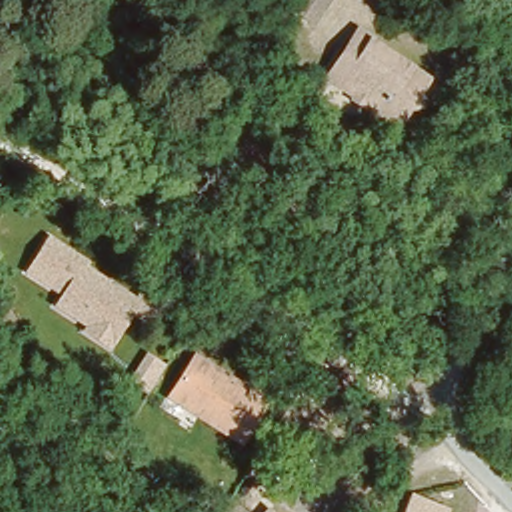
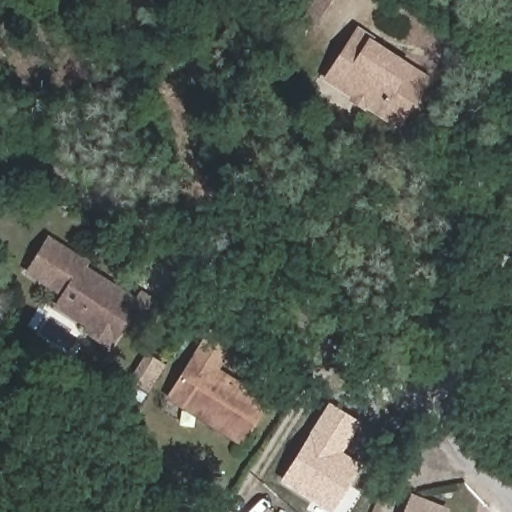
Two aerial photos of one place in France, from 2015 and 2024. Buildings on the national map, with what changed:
unchanged [(289,2),(290,0),(322,0),(311,17),(289,2)]
unchanged [(372,39),(369,44),(384,55),(382,58),(393,66),(402,67),(430,85),(420,100),(421,112),(410,112),(402,126),(370,104),(363,105),(356,101),(355,93),(340,84),(327,75),(340,56),(357,29),(372,39)]
unchanged [(86,266),(137,297),(142,286),(172,305),(156,333),(135,320),(115,352),(81,331),(85,325),(55,306),(61,293),(26,272),(49,235),(90,258),(86,266)]
unchanged [(169,365),(149,393),(129,380),(147,351),(169,365)]
unchanged [(267,405),(242,445),(165,392),(190,353),(267,405)]
new [(309,435),(308,434),(328,402),(360,422),(342,452),(361,465),(332,512),(329,512),(280,482),(309,435)]
unchanged [(447,510),(446,512),(404,512),(410,496),(447,510)]
unchanged [(274,512),(264,512),(269,507),(274,512)]

